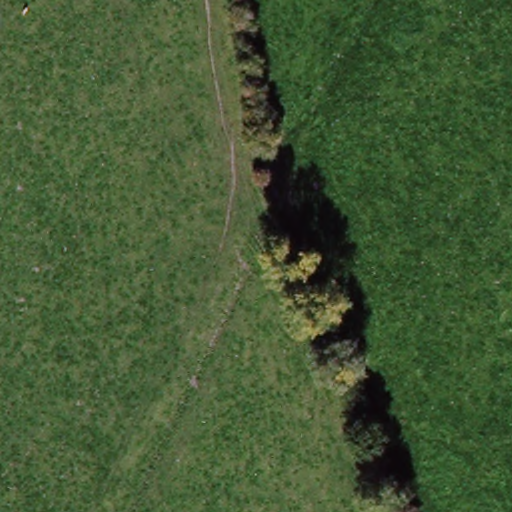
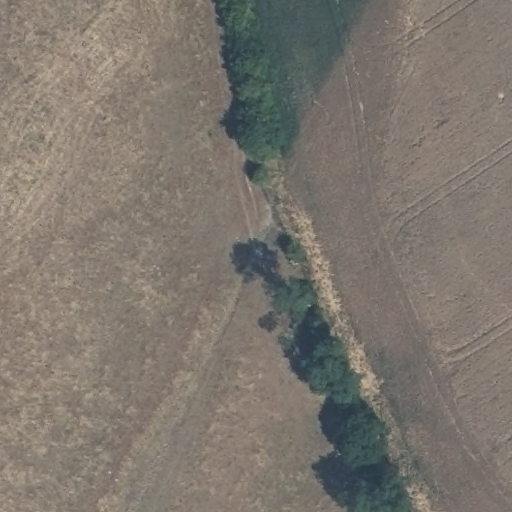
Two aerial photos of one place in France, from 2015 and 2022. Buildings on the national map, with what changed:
[]

